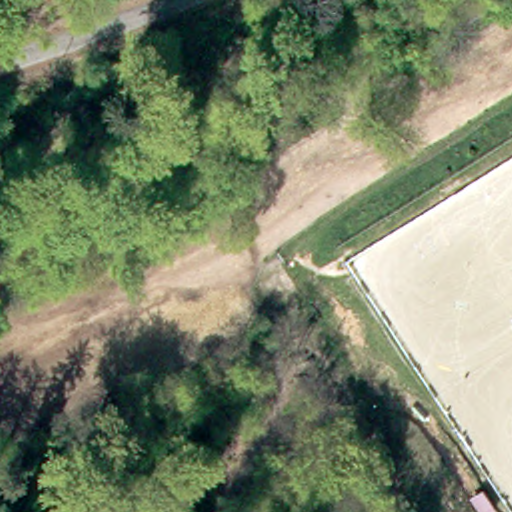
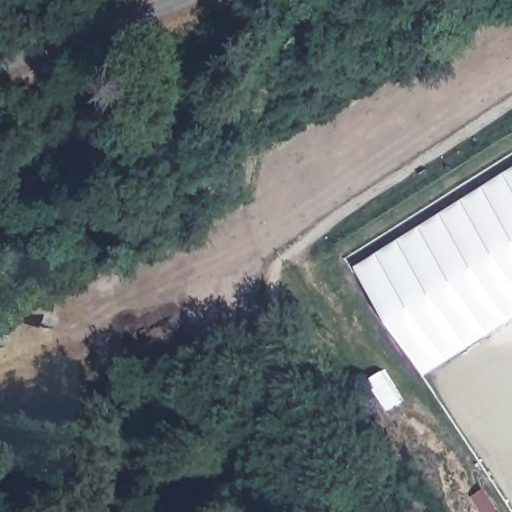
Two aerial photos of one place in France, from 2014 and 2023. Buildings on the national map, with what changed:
new [(512,170),(512,320),(428,373),(359,266),(512,170)]
unchanged [(472,460),(489,488),(482,492),(464,465),(472,460)]

